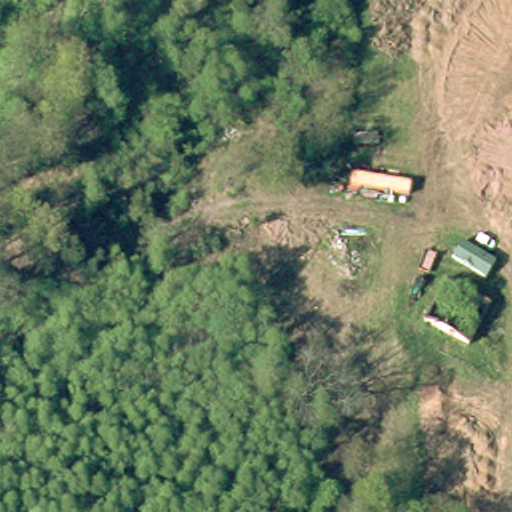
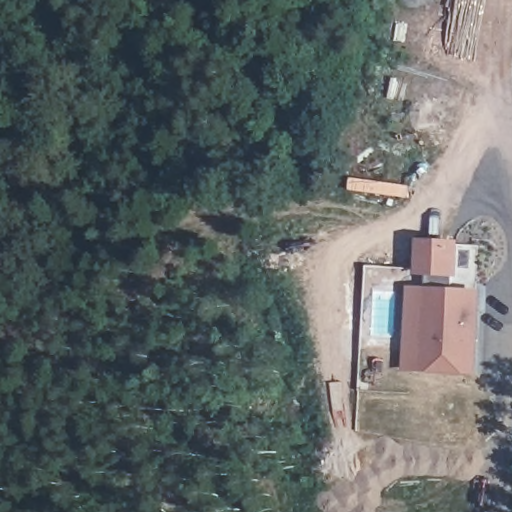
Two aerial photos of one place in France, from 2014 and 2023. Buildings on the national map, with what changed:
new [(420,287),(422,238),(462,242),(462,290),(483,291),(478,374),(408,372),(412,287),(420,287)]
demolished [(445,284),(493,304),(475,350),(425,329),(445,284)]

